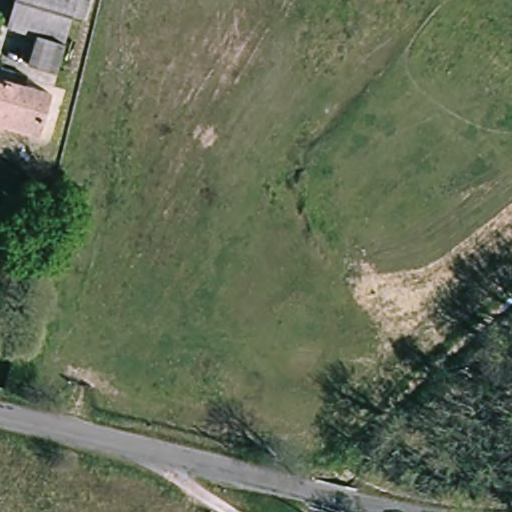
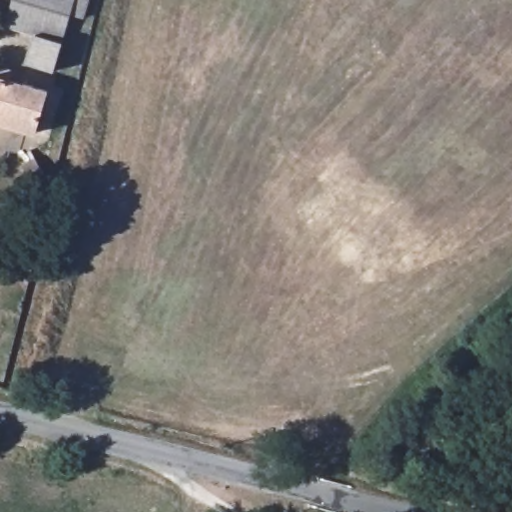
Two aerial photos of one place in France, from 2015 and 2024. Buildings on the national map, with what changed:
unchanged [(29,39),(3,30),(12,0),(73,0),(62,41),(52,74),(23,65),(29,39)]
unchanged [(15,73),(12,85),(46,92),(33,134),(0,127),(0,73),(1,70),(15,73)]

